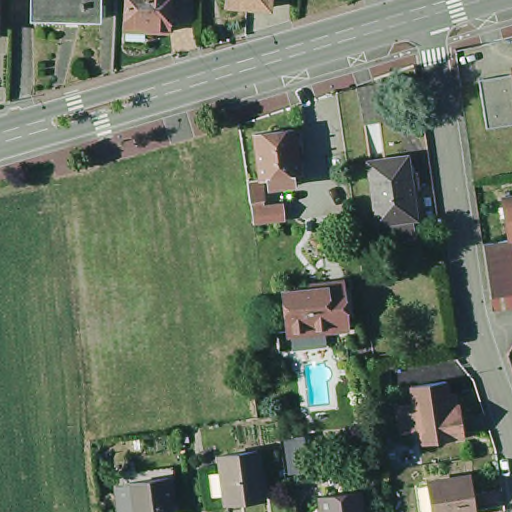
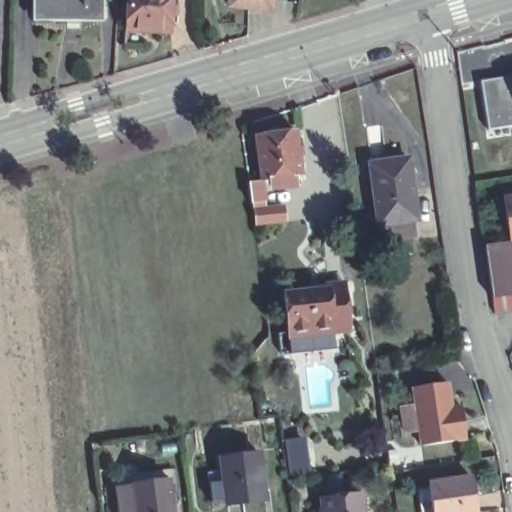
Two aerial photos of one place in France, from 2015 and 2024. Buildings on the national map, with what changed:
unchanged [(48,21),(48,14),(30,15),(30,0),(53,0),(52,21),(48,21)]
unchanged [(75,20),(67,20),(67,22),(52,21),(53,0),(76,0),(75,20)]
unchanged [(76,0),(97,0),(97,20),(75,20),(76,0)]
unchanged [(123,32),(125,0),(114,0),(169,0),(167,34),(123,32)]
unchanged [(264,7),(222,4),(222,0),(265,0),(264,7)]
unchanged [(512,80),(512,130),(489,133),(482,84),(512,80)]
unchanged [(256,183),(250,137),(291,132),(297,178),(290,179),(292,189),(270,192),(268,182),(256,183)]
unchanged [(370,239),(360,159),(398,155),(400,172),(407,172),(410,199),(404,200),(407,218),(402,218),(405,235),(370,239)]
unchanged [(280,224),(249,226),(246,204),(244,185),(256,183),(259,203),(259,209),(279,208),(280,224)]
unchanged [(508,200),(512,200),(512,225),(508,200)]
unchanged [(489,248),(508,245),(512,244),(512,300),(497,301),(496,295),(489,248)]
unchanged [(292,321),(285,322),(282,291),(302,289),(302,284),(340,280),(340,285),(343,285),(347,316),(349,331),(340,332),(340,328),(293,334),(292,325),(292,321)]
unchanged [(420,408),(417,389),(452,384),(456,409),(465,408),(467,419),(470,440),(425,446),(423,431),(409,433),(406,411),(420,408)]
unchanged [(258,506),(221,510),(215,463),(253,459),(255,482),(260,482),(260,490),(256,491),(258,506)]
unchanged [(466,477),(471,512),(427,512),(423,483),(466,477)]
unchanged [(167,479),(169,487),(174,487),(175,493),(170,493),(172,512),(134,512),(130,484),(167,479)]
unchanged [(360,493),(363,512),(322,512),(320,498),(360,493)]

